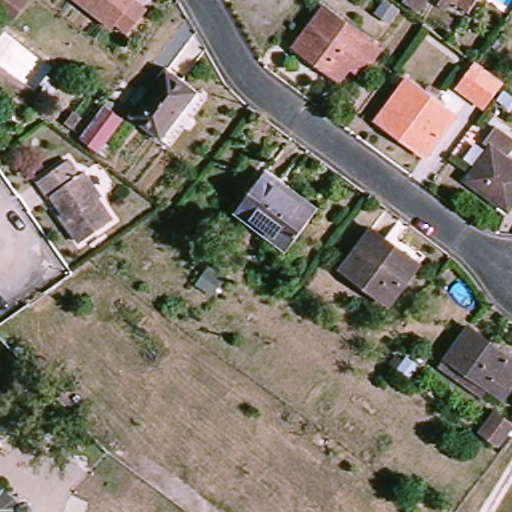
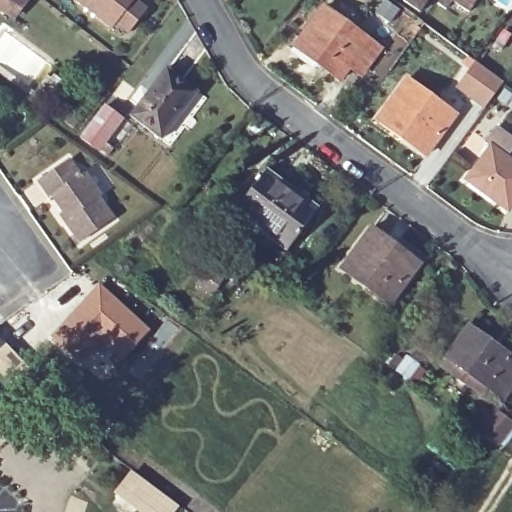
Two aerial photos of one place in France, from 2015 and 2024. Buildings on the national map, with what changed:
unchanged [(0,15),(0,0),(30,0),(12,25),(0,15)]
unchanged [(130,2),(142,12),(125,36),(112,25),(109,30),(69,0),(131,0),(130,2)]
unchanged [(388,23),(372,12),(382,0),(386,0),(397,9),(388,23)]
unchanged [(420,9),(405,0),(426,0),(420,9)]
unchanged [(460,5),(455,2),(449,10),(442,5),(445,0),(463,0),(460,5)]
unchanged [(362,79),(348,70),(338,82),(294,51),(323,10),(382,52),(362,79)]
unchanged [(503,81),(482,107),(456,88),(475,61),(503,81)]
unchanged [(196,91),(158,140),(127,116),(164,68),(196,91)]
unchanged [(425,157),(378,123),(409,83),(455,116),(425,157)]
unchanged [(96,150),(81,138),(105,110),(117,120),(96,150)]
unchanged [(511,212),(468,181),(491,150),(486,146),(497,130),(512,140),(512,155),(509,160),(512,162),(512,211),(511,212)]
unchanged [(78,177),(83,173),(99,198),(96,200),(111,219),(80,241),(60,216),(64,212),(52,196),(50,197),(39,182),(66,162),(78,177)]
unchanged [(287,252),(234,214),(264,175),(316,212),(287,252)]
unchanged [(421,264),(391,305),(345,271),(372,232),(421,264)]
unchanged [(218,276),(206,293),(193,283),(205,267),(218,276)]
new [(88,298),(100,285),(148,332),(122,359),(101,339),(80,361),(52,335),(75,312),(88,298)]
unchanged [(446,364),(452,357),(474,325),(512,352),(512,394),(510,398),(493,387),(488,394),(446,364)]
unchanged [(0,392),(0,361),(16,377),(0,392)]
unchanged [(497,440),(477,426),(492,405),(511,419),(497,440)]
new [(176,512),(137,512),(114,494),(132,471),(180,507),(176,512)]

